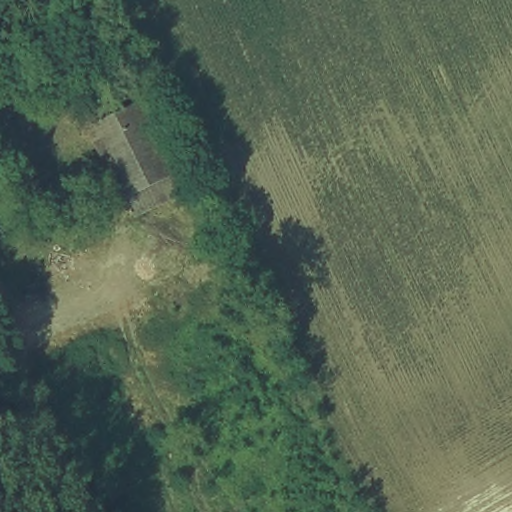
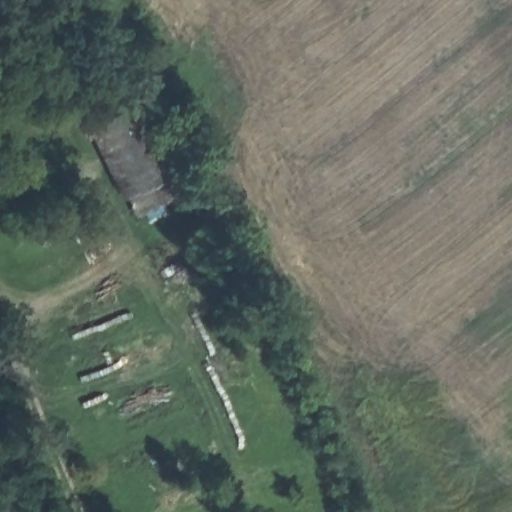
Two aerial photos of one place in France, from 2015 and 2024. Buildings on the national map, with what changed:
unchanged [(126,201),(117,184),(85,118),(127,97),(161,162),(170,179),(126,201)]

